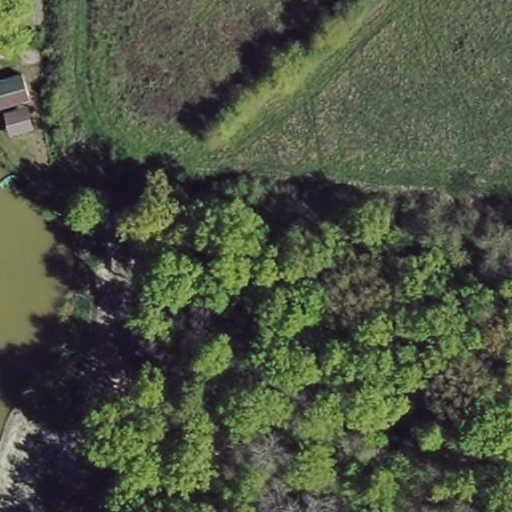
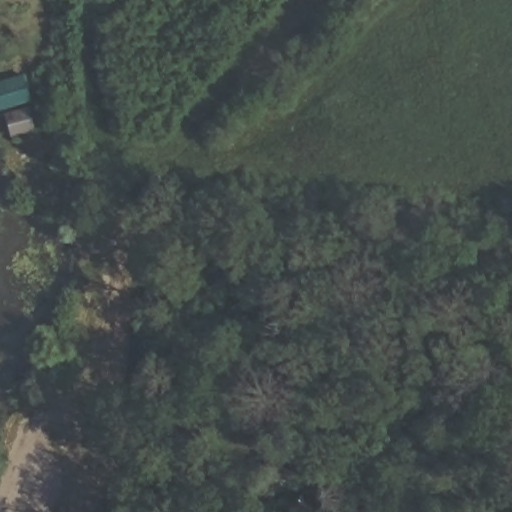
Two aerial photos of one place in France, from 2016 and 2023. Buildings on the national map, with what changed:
unchanged [(25,77),(28,105),(0,109),(0,80),(25,77)]

